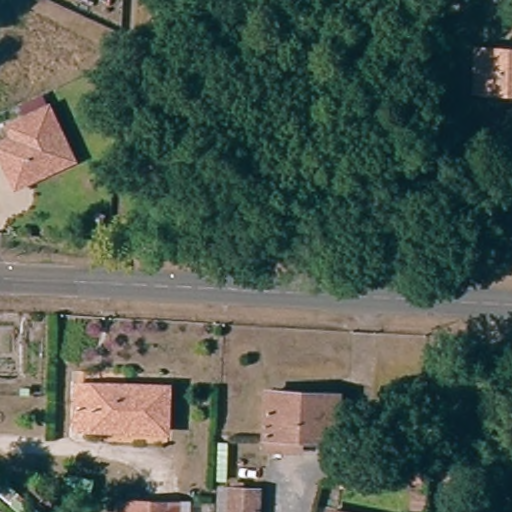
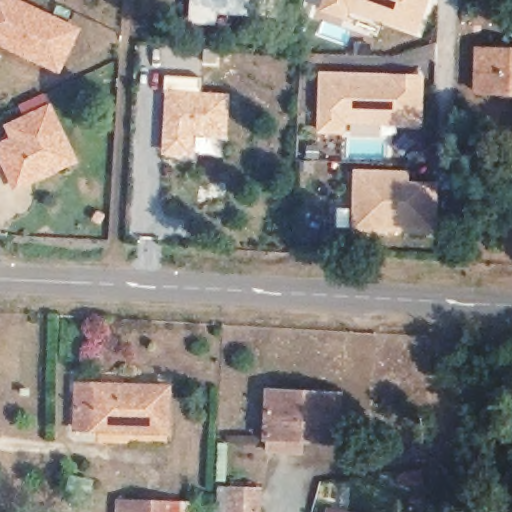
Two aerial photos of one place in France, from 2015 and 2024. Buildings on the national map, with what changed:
new [(22,0),(77,27),(60,70),(0,42),(0,0),(22,0)]
new [(190,0),(285,0),(284,18),(227,15),(219,14),(218,25),(189,22),(190,0)]
new [(307,1),(308,0),(430,0),(418,33),(351,9),(347,19),(321,10),(322,6),(307,1)]
unchanged [(475,39),(512,38),(512,83),(475,83),(475,39)]
new [(320,70),(426,74),(424,126),(346,122),(346,134),(318,133),(320,70)]
new [(163,151),(166,90),(166,76),(202,77),(202,91),(231,93),(229,134),(193,132),(192,153),(163,151)]
unchanged [(55,169),(19,187),(0,150),(0,147),(15,140),(10,127),(49,107),(65,140),(75,159),(55,169)]
new [(355,169),(411,171),(410,182),(439,182),(438,234),(355,229),(355,169)]
unchanged [(80,385),(170,392),(167,439),(75,432),(80,385)]
unchanged [(343,448),(303,445),(305,462),(263,459),(267,391),(343,397),(343,448)]
unchanged [(215,485),(262,488),(261,512),(215,512),(215,485)]
unchanged [(169,512),(125,512),(126,504),(169,507),(169,512)]
unchanged [(192,508),(192,512),(169,512),(169,507),(192,508)]
unchanged [(330,510),(340,512),(330,512),(330,510)]

